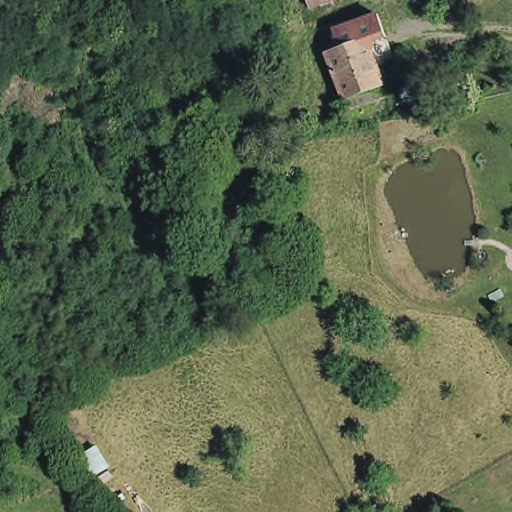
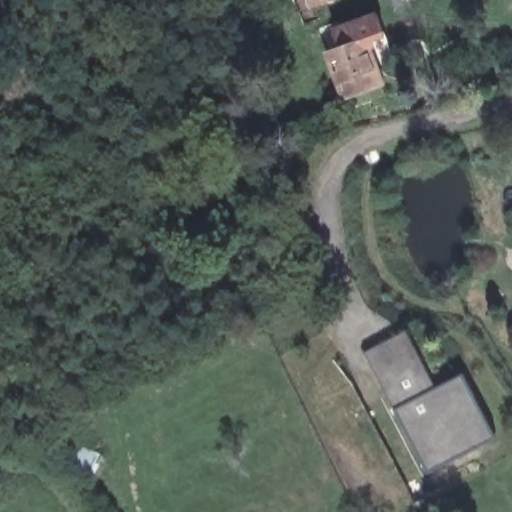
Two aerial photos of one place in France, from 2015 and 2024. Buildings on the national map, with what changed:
unchanged [(308,3),(307,0),(342,0),(310,11),(308,3)]
unchanged [(321,57),(337,51),(331,33),(353,25),(368,19),(374,36),(359,42),(366,60),(378,56),(381,65),(371,70),(377,88),(338,102),(321,57)]
new [(495,437),(427,473),(378,379),(363,351),(396,334),(404,330),(434,386),(461,372),(495,437)]

